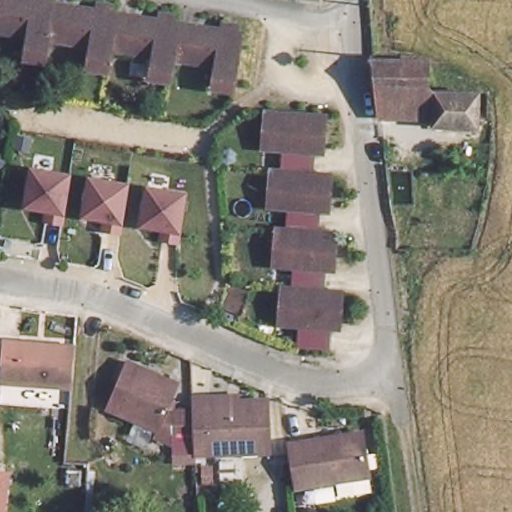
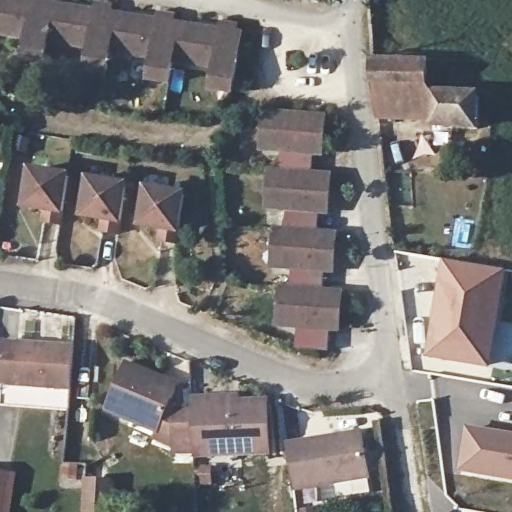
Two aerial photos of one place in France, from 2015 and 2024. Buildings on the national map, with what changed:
unchanged [(42,2),(91,10),(92,1),(106,4),(105,11),(154,20),(155,11),(168,14),(167,21),(216,30),(217,21),(231,24),(230,31),(235,32),(234,40),(229,80),(208,79),(211,65),(168,59),(167,71),(146,68),(148,55),(106,50),(104,61),(84,58),(85,45),(42,40),(41,51),(20,49),(21,35),(0,32),(0,0),(42,0),(42,2)]
unchanged [(370,58),(444,61),(444,88),(473,90),(472,123),(429,121),(429,117),(374,114),(370,58)]
unchanged [(278,303),(280,282),(290,283),(291,262),(282,261),(272,261),(273,244),(274,224),(285,224),(287,202),(276,201),(267,201),(268,183),(269,165),(279,166),(281,144),(271,143),(261,142),(261,125),(262,105),(305,109),(322,110),(320,146),(296,145),(295,154),(310,155),(309,169),(329,170),(327,205),(302,204),(302,210),(315,211),(315,226),(334,227),(332,266),(308,264),(307,270),(321,271),(320,285),(340,287),(337,325),(311,322),(311,330),(327,331),(326,347),(317,346),(295,345),(297,321),(287,320),(277,320),(278,303)]
unchanged [(63,227),(44,225),(46,214),(22,210),(29,166),(73,173),(63,227)]
unchanged [(121,235),(100,232),(102,222),(80,220),(86,176),(130,182),(121,235)]
unchanged [(178,245),(162,242),(164,234),(140,230),(146,185),(188,191),(178,245)]
new [(432,290),(439,257),(507,270),(489,369),(422,357),(430,305),(427,305),(427,301),(423,301),(423,312),(416,313),(414,290),(432,290)]
unchanged [(0,377),(0,335),(72,338),(68,382),(0,377)]
unchanged [(194,442),(194,445),(173,446),(173,437),(105,405),(126,357),(172,377),(174,388),(166,403),(173,407),(192,406),(194,442)]
unchanged [(271,448),(212,451),(211,441),(194,442),(192,406),(192,392),(209,392),(238,391),(238,398),(268,397),(271,448)]
new [(512,431),(512,480),(452,471),(460,423),(512,431)]
unchanged [(343,475),(300,481),(293,436),(367,425),(373,463),(374,470),(343,475)]
new [(92,467),(117,469),(115,507),(89,505),(92,467)]
unchanged [(0,512),(0,472),(12,474),(5,512),(0,512)]

